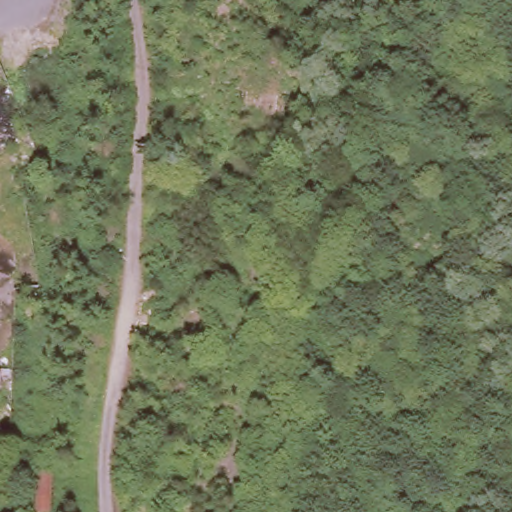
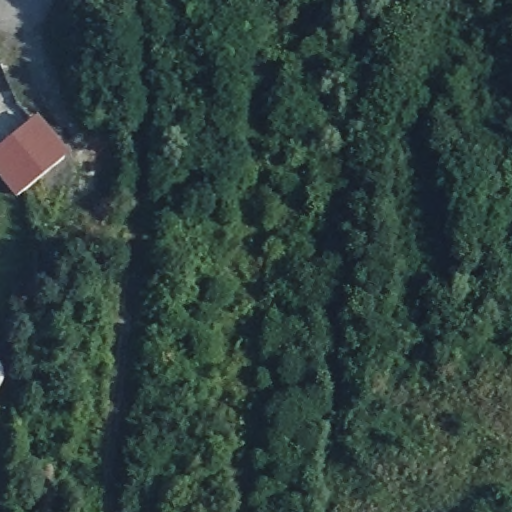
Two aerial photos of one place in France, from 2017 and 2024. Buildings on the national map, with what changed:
new [(67,157),(14,200),(0,183),(0,146),(35,118),(67,157)]

